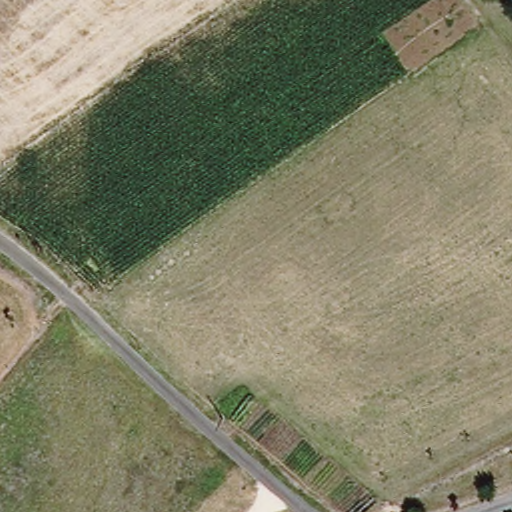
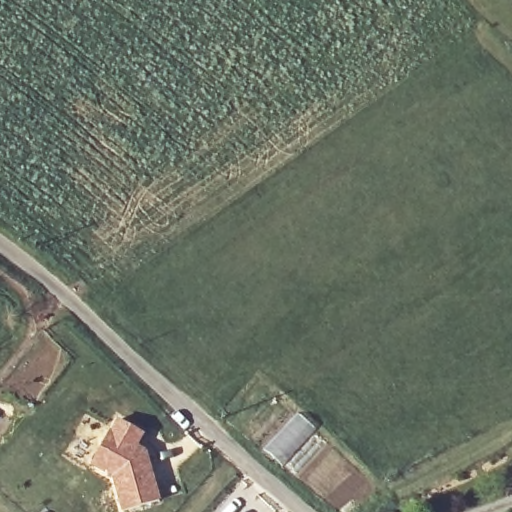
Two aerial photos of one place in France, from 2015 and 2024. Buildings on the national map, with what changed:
new [(146,433),(139,445),(148,450),(161,502),(129,512),(120,512),(109,478),(90,465),(116,417),(146,433)]

